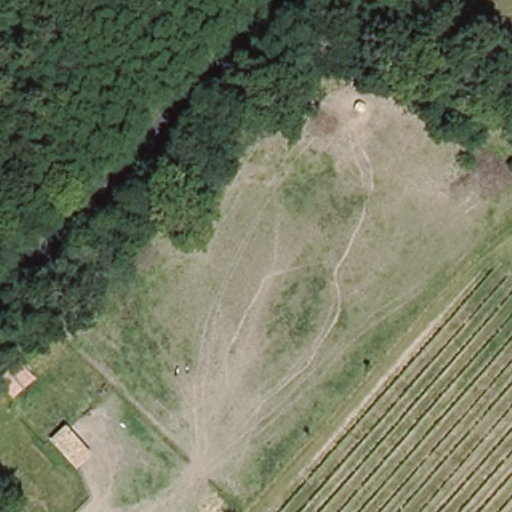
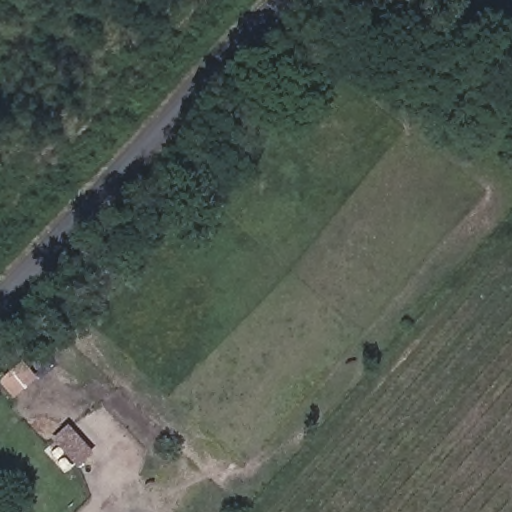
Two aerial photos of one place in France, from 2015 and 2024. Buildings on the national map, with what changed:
[]

